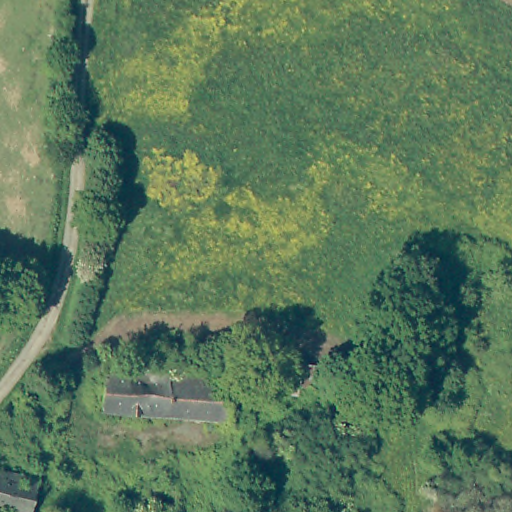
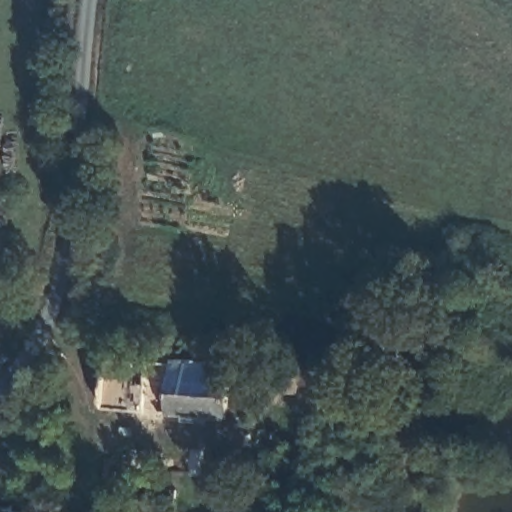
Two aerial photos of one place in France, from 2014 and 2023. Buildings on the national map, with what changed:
unchanged [(101,406),(105,354),(168,359),(168,355),(228,360),(226,414),(101,406)]
unchanged [(327,387),(296,385),(295,395),(258,391),(262,359),(328,366),(327,387)]
unchanged [(27,512),(0,504),(0,466),(36,475),(27,512)]
unchanged [(128,512),(129,497),(147,497),(147,484),(176,485),(174,512),(128,512)]

